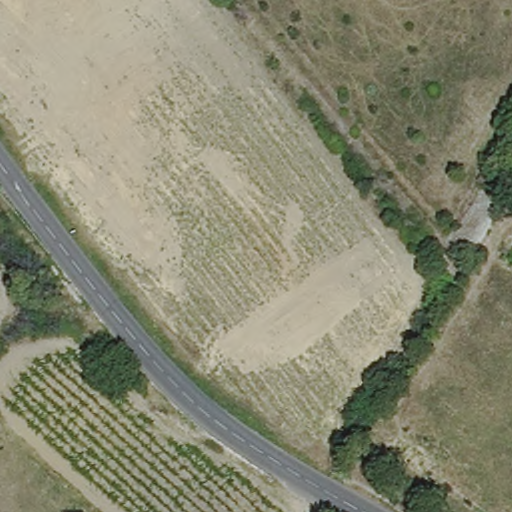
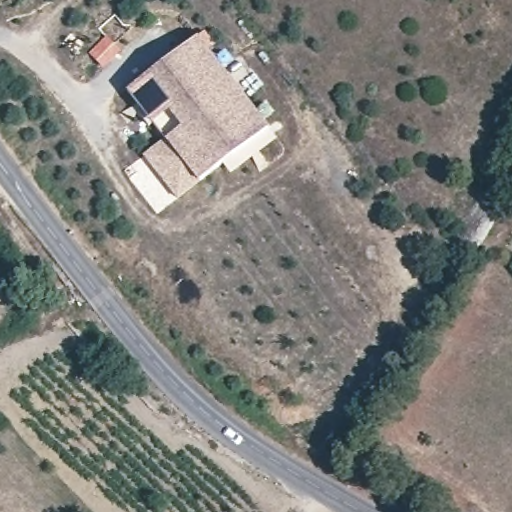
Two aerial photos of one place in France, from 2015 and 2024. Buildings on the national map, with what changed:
new [(144,155),(167,136),(156,119),(152,122),(128,90),(196,34),(268,125),(201,178),(176,196),(144,155)]

